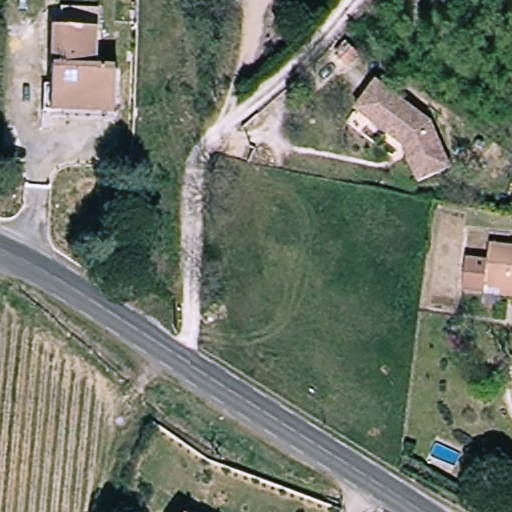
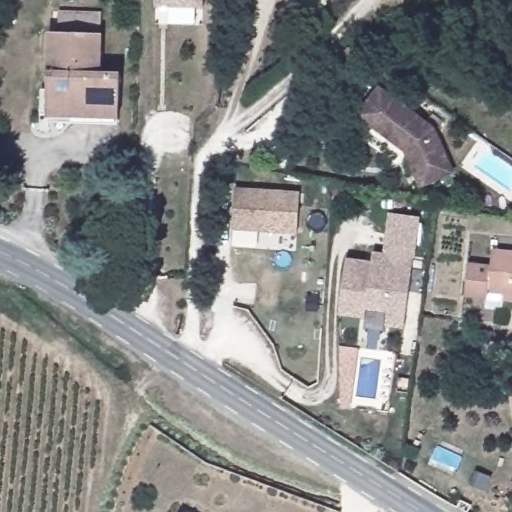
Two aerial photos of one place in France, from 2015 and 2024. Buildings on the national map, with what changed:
new [(154,8),(154,0),(204,0),(203,10),(154,8)]
unchanged [(78,123),(52,122),(54,37),(60,37),(61,15),(93,16),(106,16),(106,40),(105,77),(123,78),(122,104),(121,123),(78,123)]
unchanged [(430,126),(448,172),(416,185),(401,149),(370,124),(355,112),(365,100),(376,85),(430,126)]
new [(300,193),(297,236),(231,230),(235,190),(300,193)]
new [(373,253),(375,243),(385,244),(387,244),(392,203),(421,207),(405,318),(388,316),(390,301),(367,297),(366,307),(341,303),(348,249),(373,253)]
unchanged [(490,291),(489,299),(468,297),(472,267),(492,268),(495,250),(512,252),(512,309),(505,308),(505,292),(490,291)]

